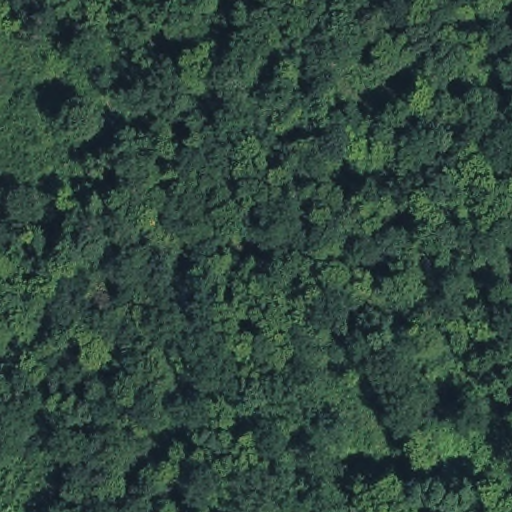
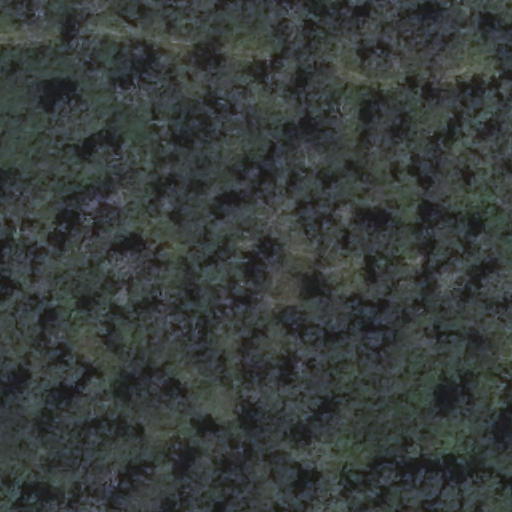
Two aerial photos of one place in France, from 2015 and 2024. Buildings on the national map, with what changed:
[]

